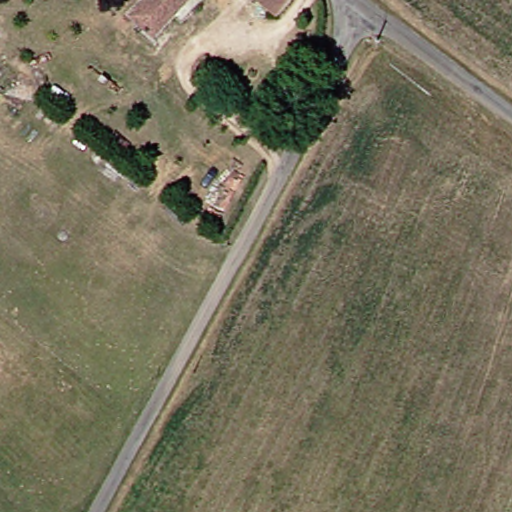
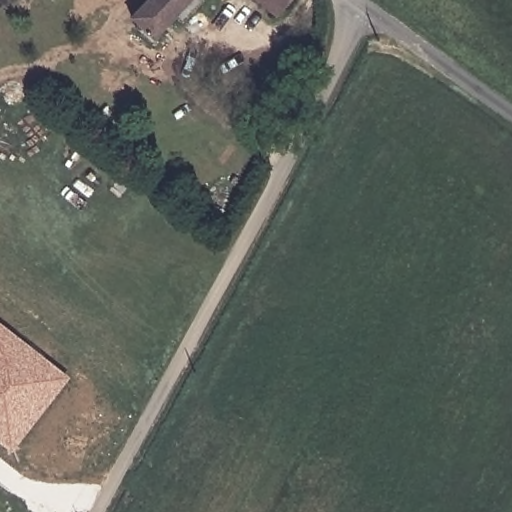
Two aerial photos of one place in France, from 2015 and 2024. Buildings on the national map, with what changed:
unchanged [(162,38),(139,18),(155,0),(197,0),(162,38)]
unchanged [(283,17),(263,0),(297,0),(283,17)]
new [(13,451),(0,441),(0,322),(70,377),(13,451)]

